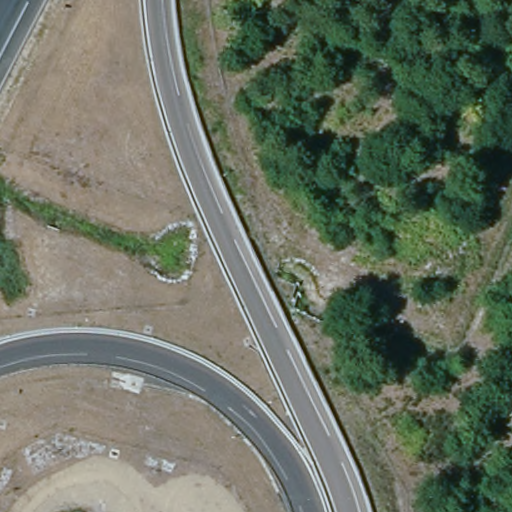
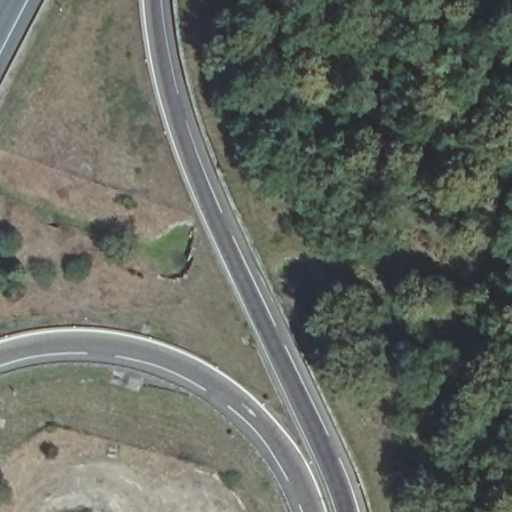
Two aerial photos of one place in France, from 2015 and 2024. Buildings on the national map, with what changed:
[]

